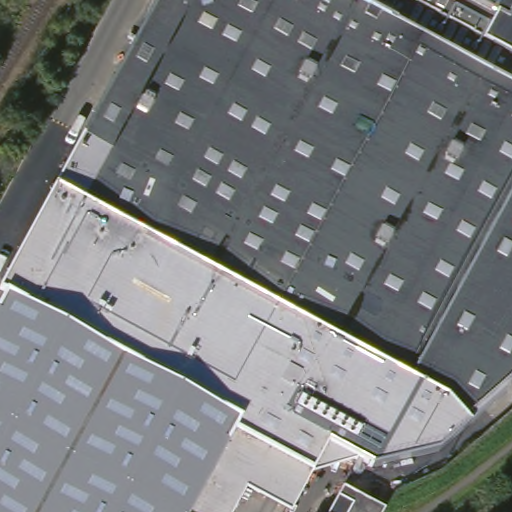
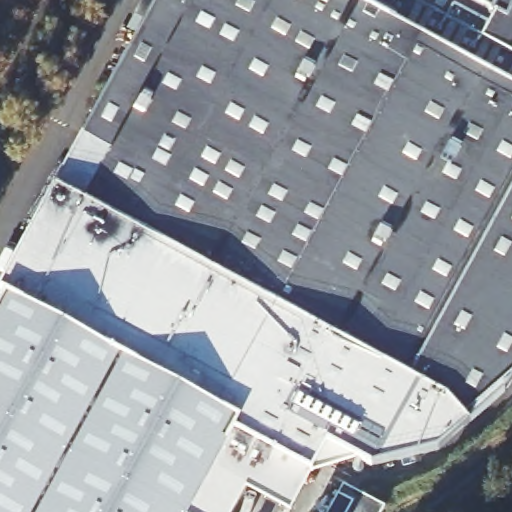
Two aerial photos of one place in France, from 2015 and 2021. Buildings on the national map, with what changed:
unchanged [(0,289),(57,185),(83,140),(157,0),(512,0),(512,379),(469,423),(443,447),(373,466),(362,459),(314,472),(290,512),(288,512),(248,489),(234,512),(0,512),(0,303),(6,292),(0,289)]
unchanged [(389,498),(387,501),(383,510),(382,512),(341,512),(355,486),(357,482),(389,498)]

